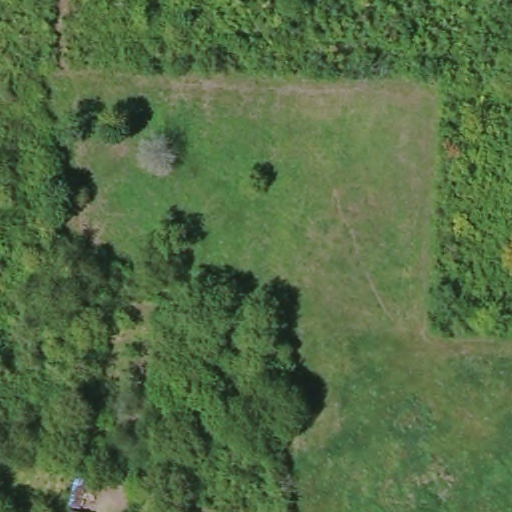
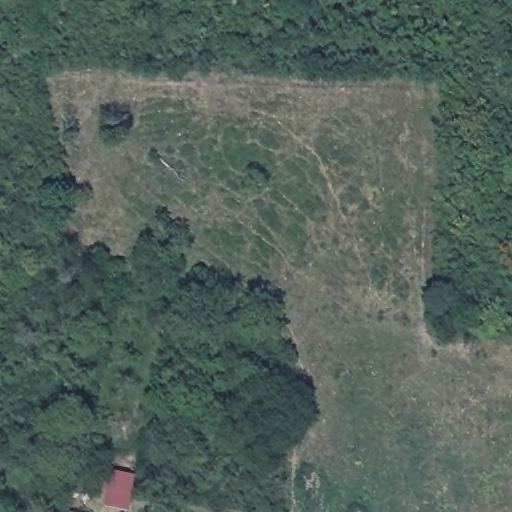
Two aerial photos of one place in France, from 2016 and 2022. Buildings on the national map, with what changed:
unchanged [(40,467),(39,492),(14,490),(15,465),(40,467)]

